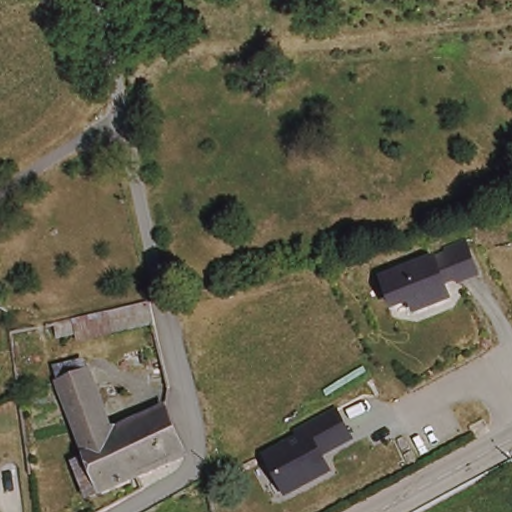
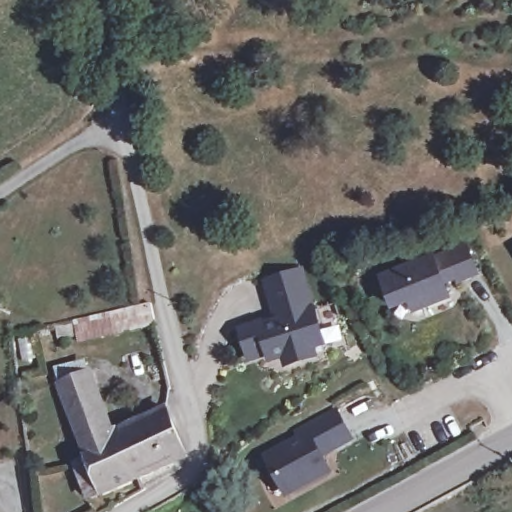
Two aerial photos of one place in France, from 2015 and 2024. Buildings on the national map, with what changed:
unchanged [(449,287),(454,301),(412,318),(406,307),(391,312),(374,277),(464,240),(477,275),(449,287)]
new [(283,367),(281,358),(268,362),(266,357),(248,362),(238,325),(273,314),(261,280),(303,267),(326,346),(316,348),(319,357),(283,367)]
new [(148,303),(152,323),(79,340),(74,320),(148,303)]
unchanged [(93,504),(79,469),(90,464),(60,390),(92,378),(116,440),(129,435),(153,426),(171,418),(187,456),(188,465),(93,504)]
unchanged [(336,410),(344,425),(314,442),(329,471),(291,491),(283,476),(278,478),(264,455),(299,437),(296,431),(336,410)]

